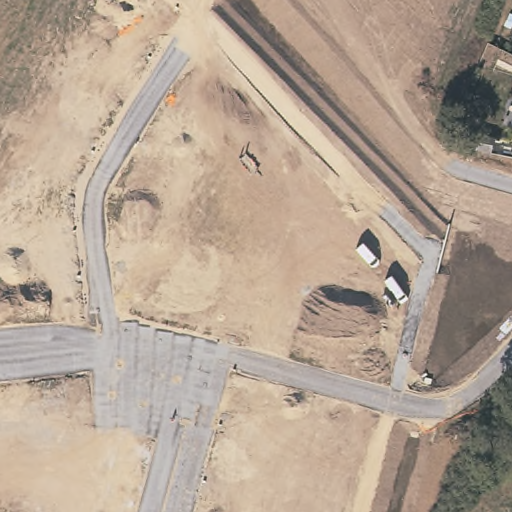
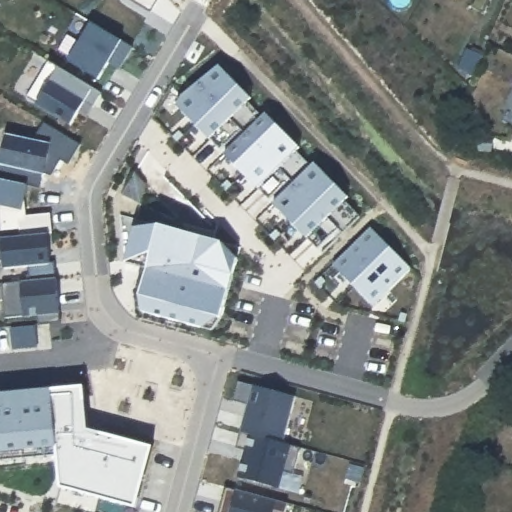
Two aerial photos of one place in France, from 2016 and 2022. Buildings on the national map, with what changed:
new [(94,26),(135,51),(121,73),(111,66),(101,83),(70,65),(94,26)]
unchanged [(60,67),(94,88),(102,94),(87,118),(77,115),(71,124),(37,103),(25,98),(48,61),(60,67)]
new [(180,92),(208,64),(217,73),(221,69),(253,102),(250,106),(264,121),(268,117),(301,151),(298,155),(312,170),(316,166),(350,201),(346,205),(362,221),(340,241),(336,237),(320,253),(275,208),(291,191),(287,187),(271,204),(226,158),(243,141),(239,138),(222,154),(178,109),(180,92)]
unchanged [(512,115),(512,118),(510,118),(512,115)]
new [(161,229),(224,246),(240,262),(235,279),(226,277),(222,292),(230,294),(223,322),(210,318),(206,332),(144,316),(143,300),(150,273),(127,266),(136,232),(161,229)]
new [(373,306),(335,264),(370,230),(412,269),(373,306)]
new [(53,262),(57,280),(29,282),(26,266),(6,268),(3,238),(49,233),(53,262)]
unchanged [(61,324),(37,325),(36,317),(3,318),(2,284),(20,282),(57,280),(61,324)]
new [(135,507),(60,486),(56,445),(0,450),(0,393),(81,386),(86,429),(151,448),(135,507)]
new [(241,386),(298,402),(286,447),(243,436),(251,409),(236,405),(241,386)]
new [(243,436),(286,447),(303,452),(296,479),(286,477),(282,493),(241,482),(248,455),(239,453),(243,436)]
new [(229,492),(290,508),(289,512),(223,512),(229,492)]

